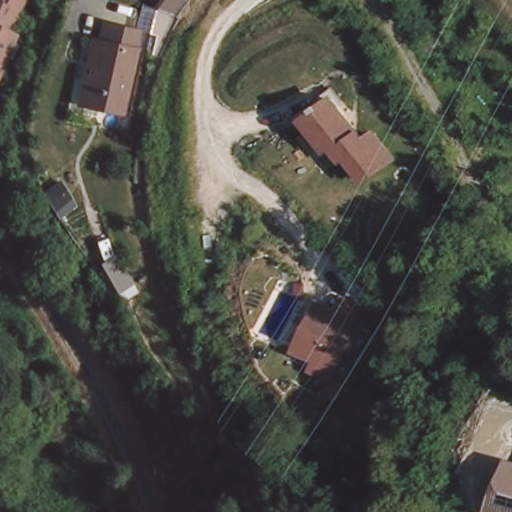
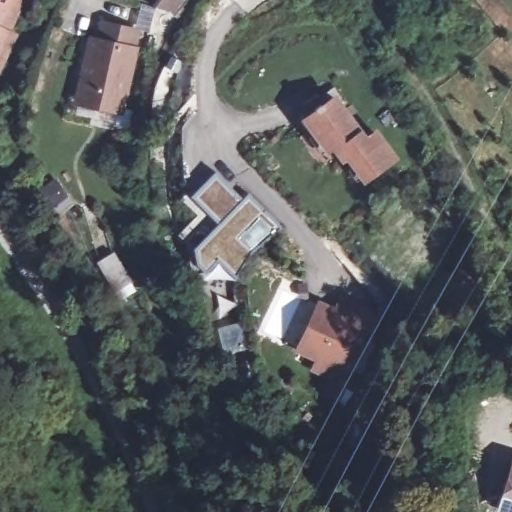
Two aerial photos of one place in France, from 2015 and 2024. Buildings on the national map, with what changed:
unchanged [(18,35),(0,73),(0,0),(27,0),(11,31),(18,35)]
unchanged [(155,8),(160,0),(188,0),(175,18),(155,8)]
unchanged [(92,40),(97,41),(101,24),(138,32),(120,111),(77,101),(92,40)]
unchanged [(382,141),(394,158),(365,180),(347,156),(342,159),(332,146),(327,150),(305,121),(335,99),(345,113),(356,128),(365,140),(375,133),(382,141)]
new [(215,172),(242,197),(245,194),(282,228),(232,277),(217,262),(206,274),(197,266),(193,248),(217,224),(190,197),(215,172)]
unchanged [(64,202),(47,210),(38,193),(55,182),(64,202)]
unchanged [(342,298),(362,307),(380,316),(372,333),(357,326),(332,378),(314,369),(320,358),(300,349),(320,307),(334,314),(342,298)]
unchanged [(512,457),(512,512),(498,512),(495,511),(512,457)]

